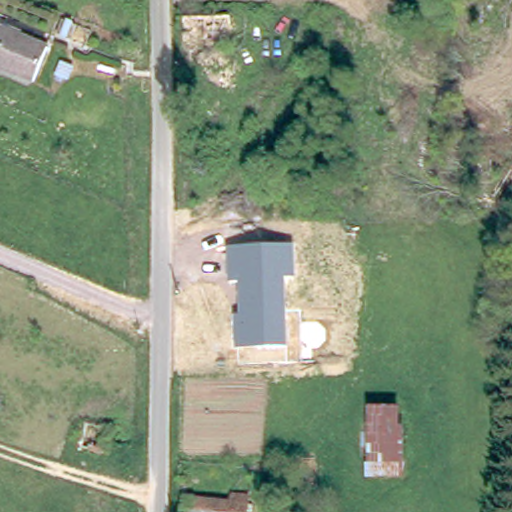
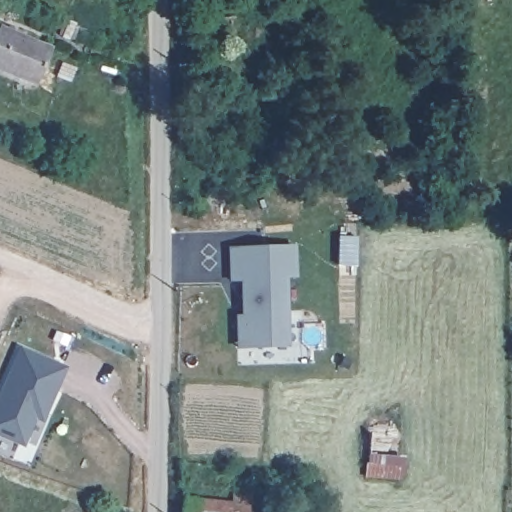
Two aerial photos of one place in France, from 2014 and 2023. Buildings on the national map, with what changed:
unchanged [(191,60),(193,15),(239,18),(238,63),(191,60)]
unchanged [(0,27),(1,24),(51,48),(35,83),(0,66),(0,27)]
unchanged [(297,277),(286,277),(288,346),(236,349),(233,314),(241,314),(239,279),(228,279),(227,249),(296,245),(297,277)]
new [(21,440),(0,431),(0,384),(18,343),(60,361),(53,377),(56,378),(43,409),(39,416),(33,413),(21,440)]
unchanged [(373,479),(371,406),(405,406),(406,479),(373,479)]
demolished [(83,462),(84,438),(115,439),(114,465),(83,462)]
unchanged [(253,509),(252,512),(186,512),(186,504),(229,508),(253,509)]

